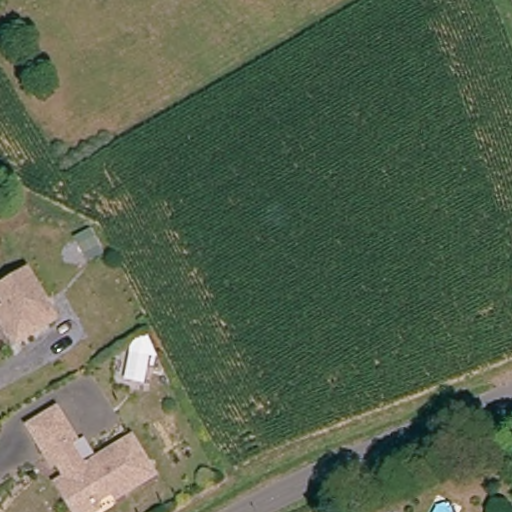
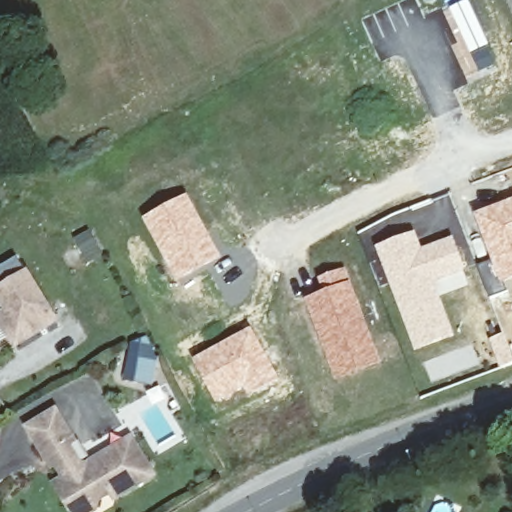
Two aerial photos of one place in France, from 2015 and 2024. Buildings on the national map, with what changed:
new [(467,0),(489,47),(471,55),(479,71),(466,77),(452,45),(463,39),(448,8),(467,0)]
new [(188,194),(221,257),(176,282),(141,217),(188,194)]
new [(474,213),(512,199),(512,279),(500,283),(489,255),(478,259),(473,246),(483,242),(474,213)]
unchanged [(91,230),(99,246),(86,254),(77,238),(91,230)]
new [(415,230),(422,247),(453,236),(468,285),(440,295),(455,337),(415,352),(374,246),(415,230)]
new [(322,291),(317,277),(346,267),(352,281),(371,328),(382,365),(336,382),(304,298),(322,291)]
unchanged [(0,319),(0,312),(7,307),(0,296),(0,290),(27,272),(56,320),(16,345),(0,319)]
new [(250,326),(278,381),(248,397),(244,390),(217,405),(191,360),(250,326)]
new [(512,353),(512,365),(500,368),(488,338),(505,332),(512,353)]
unchanged [(152,340),(148,366),(130,362),(134,337),(152,340)]
unchanged [(70,503),(62,491),(72,485),(63,471),(59,473),(34,434),(61,417),(80,447),(74,452),(86,471),(96,467),(98,466),(95,462),(133,438),(156,474),(118,498),(114,492),(103,498),(100,510),(97,512),(76,512),(70,503)]

